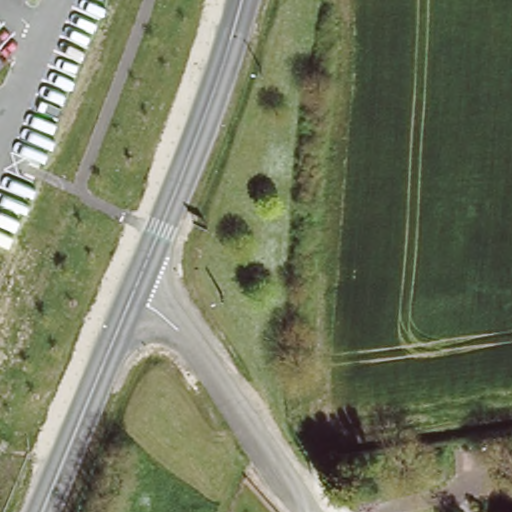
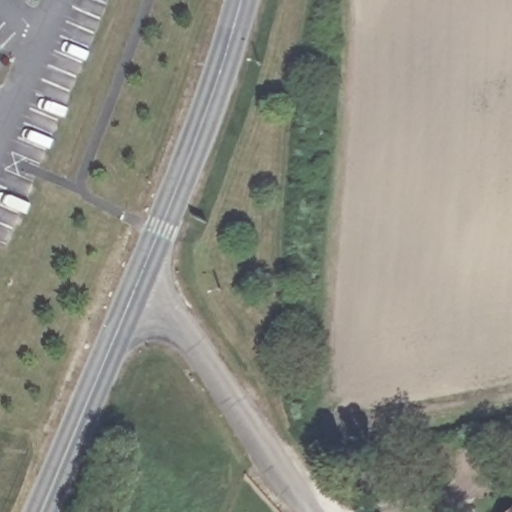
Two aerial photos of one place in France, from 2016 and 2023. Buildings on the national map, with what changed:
unchanged [(512,512),(505,512),(512,505),(512,512)]

